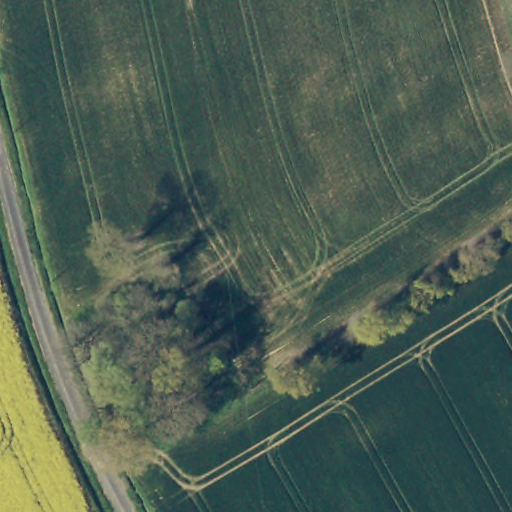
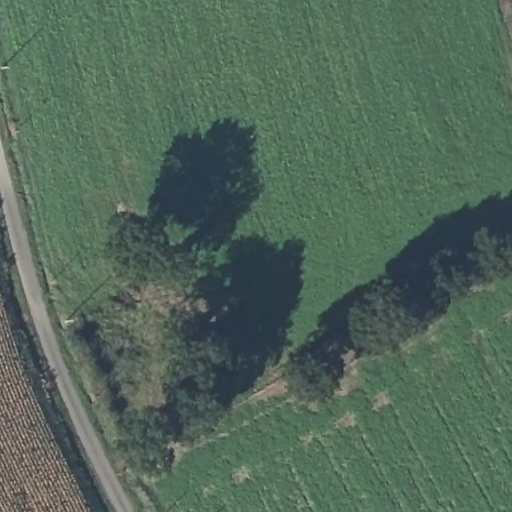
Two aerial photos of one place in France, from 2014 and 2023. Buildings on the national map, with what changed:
[]

